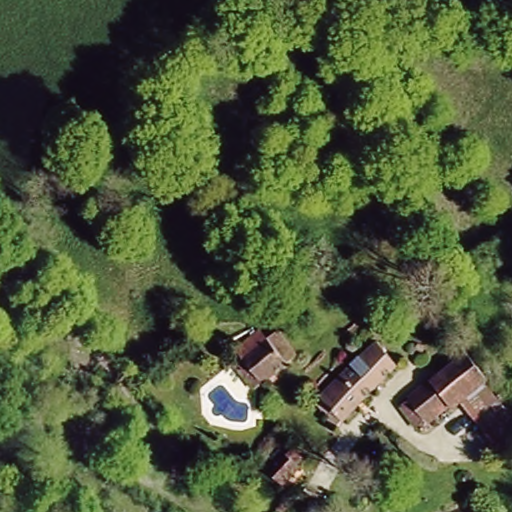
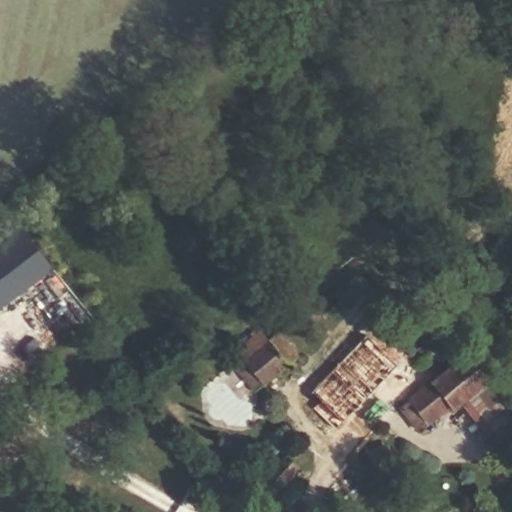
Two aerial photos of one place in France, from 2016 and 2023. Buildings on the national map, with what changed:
new [(0,238),(20,222),(53,267),(0,309),(0,238)]
unchanged [(232,365),(245,357),(235,347),(259,326),(270,337),(277,326),(299,352),(252,386),(232,365)]
unchanged [(385,335),(405,356),(343,412),(323,391),(342,372),(345,368),(385,335)]
unchanged [(398,403),(465,349),(490,377),(482,387),(512,433),(512,439),(500,450),(465,398),(452,409),(447,402),(417,429),(398,403)]
unchanged [(266,463),(277,447),(286,455),(296,441),(312,455),(280,483),(266,463)]

